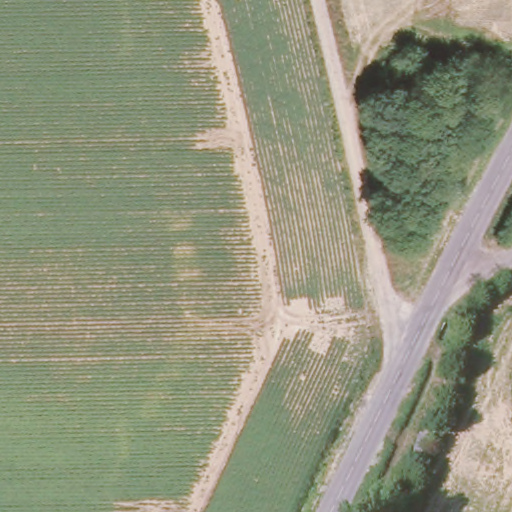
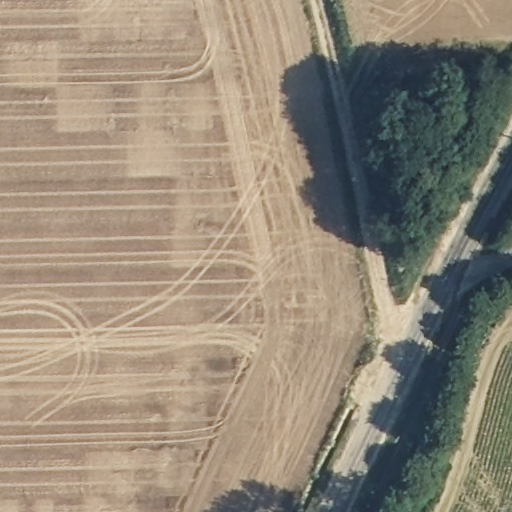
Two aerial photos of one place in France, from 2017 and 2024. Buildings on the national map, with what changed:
unchanged [(426,437),(433,440),(436,433),(444,435),(442,442),(436,440),(431,456),(421,452),(426,437)]

